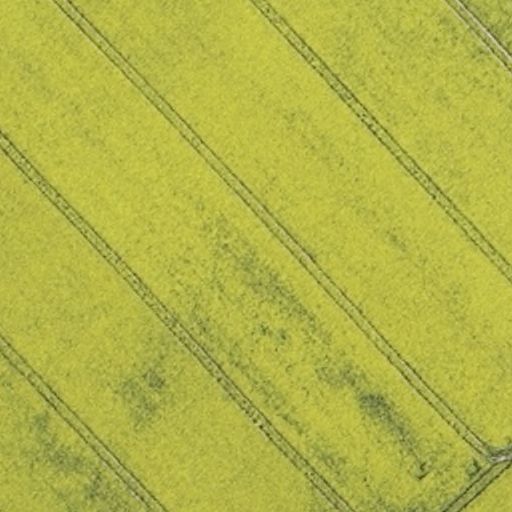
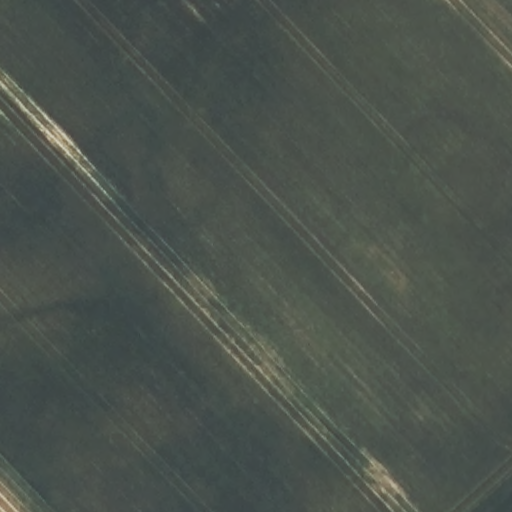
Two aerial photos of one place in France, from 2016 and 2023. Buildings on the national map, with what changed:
[]

